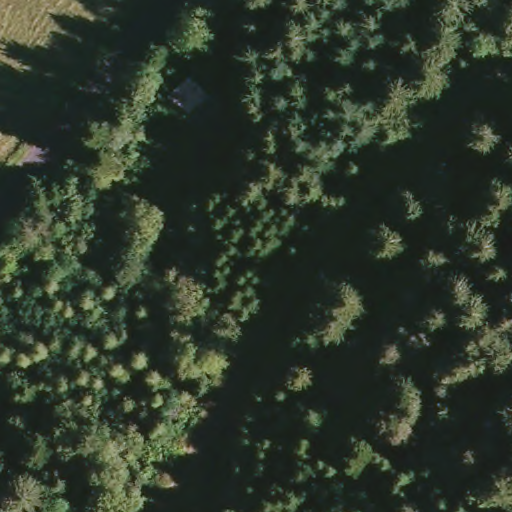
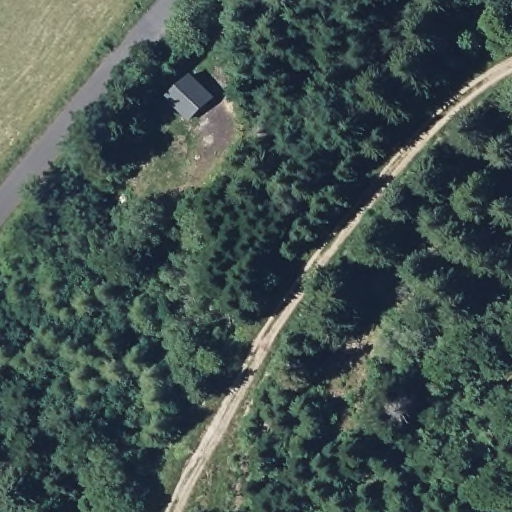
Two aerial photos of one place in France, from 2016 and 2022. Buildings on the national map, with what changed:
unchanged [(200,69),(221,95),(185,126),(165,101),(200,69)]

